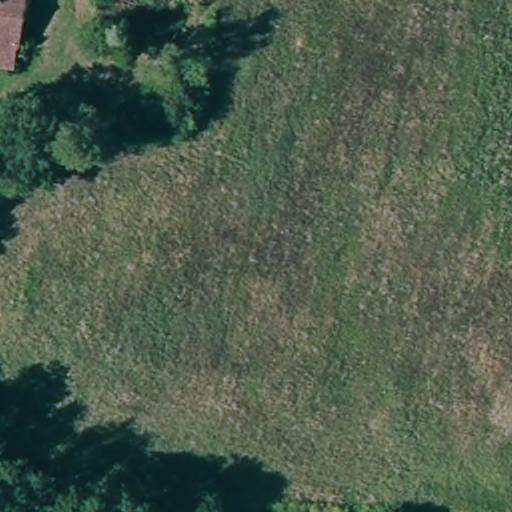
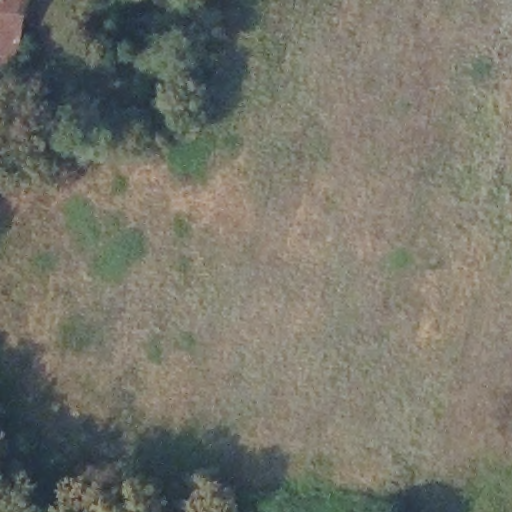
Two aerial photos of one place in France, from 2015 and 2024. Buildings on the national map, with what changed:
unchanged [(26,43),(0,41),(0,0),(32,0),(26,43)]

